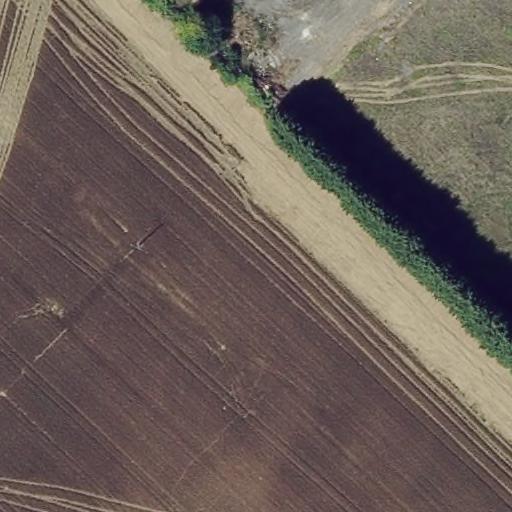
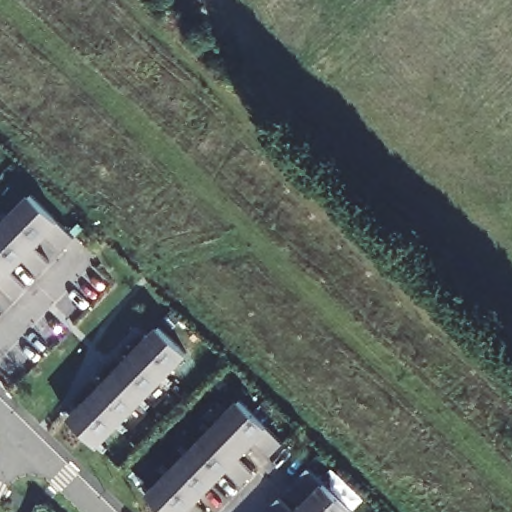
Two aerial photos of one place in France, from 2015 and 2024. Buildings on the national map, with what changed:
new [(76,237),(64,249),(49,234),(36,247),(51,262),(40,274),(24,259),(12,273),(27,287),(16,298),(0,283),(0,224),(31,192),(61,220),(76,237)]
new [(189,354),(100,445),(70,417),(160,324),(189,354)]
new [(269,425),(284,442),(272,454),(257,440),(241,457),(255,472),(242,484),(227,469),(186,512),(167,512),(147,493),(239,399),(269,425)]
new [(325,481),(356,510),(354,512),(273,512),(269,509),(280,496),(295,511),(312,492),(296,479),(309,467),(325,481)]

